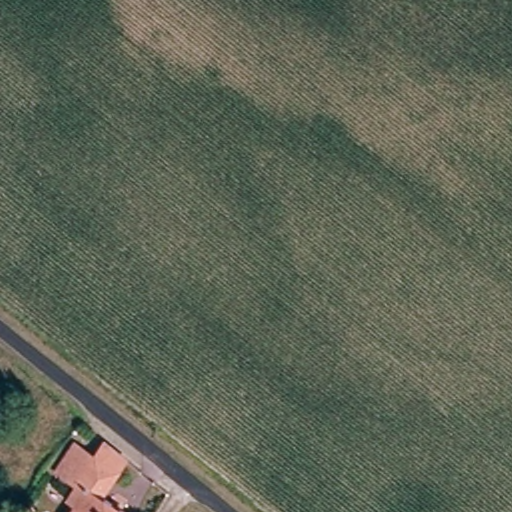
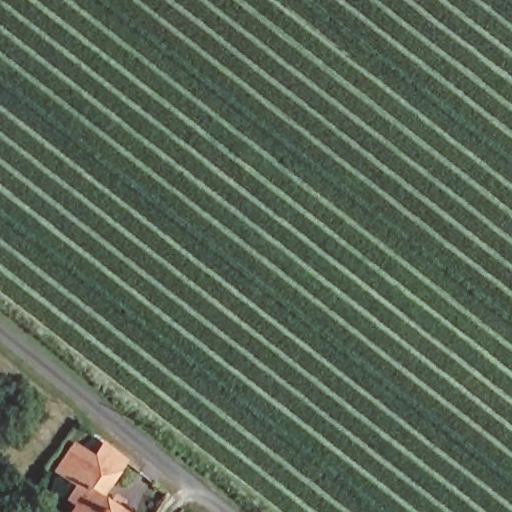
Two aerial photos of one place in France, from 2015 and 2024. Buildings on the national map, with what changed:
unchanged [(123,512),(69,512),(74,503),(66,499),(73,471),(65,465),(72,454),(95,469),(105,453),(124,468),(106,502),(123,512)]

